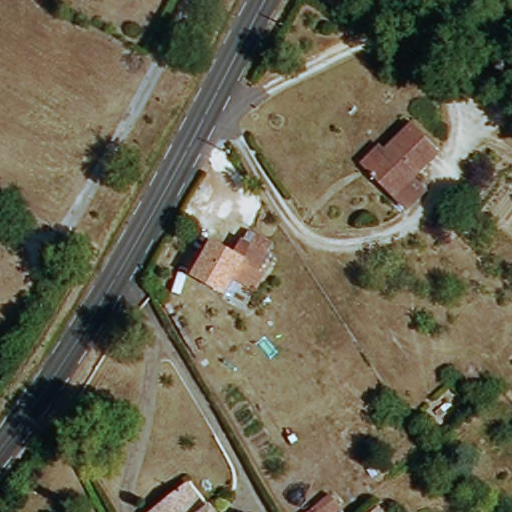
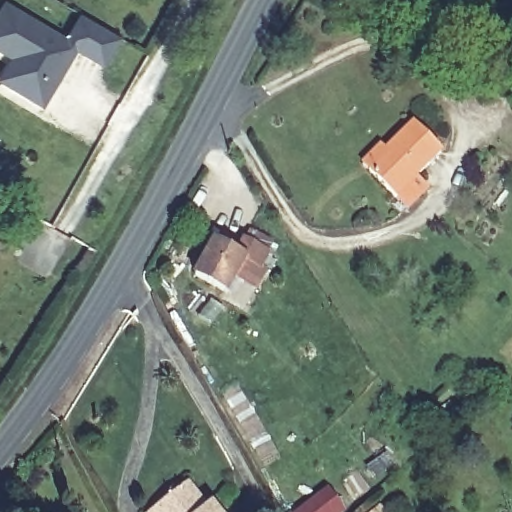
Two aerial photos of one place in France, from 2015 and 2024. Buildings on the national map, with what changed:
unchanged [(326,0),(344,0),(338,10),(324,3),(326,0)]
new [(0,17),(5,9),(67,44),(81,20),(118,40),(103,67),(75,51),(43,107),(12,89),(1,84),(14,62),(0,53),(0,17)]
unchanged [(375,175),(365,162),(383,146),(390,154),(415,131),(438,157),(393,197),(375,175)]
unchanged [(260,273),(241,264),(227,295),(195,277),(210,246),(233,258),(240,242),(270,257),(260,273)]
unchanged [(187,485),(205,505),(210,501),(219,512),(154,512),(187,485)]
unchanged [(323,492),(340,512),(300,512),(323,492)]
unchanged [(376,505),(381,512),(366,512),(376,505)]

